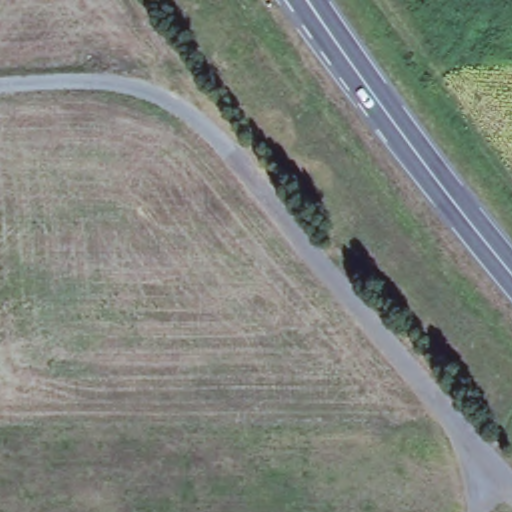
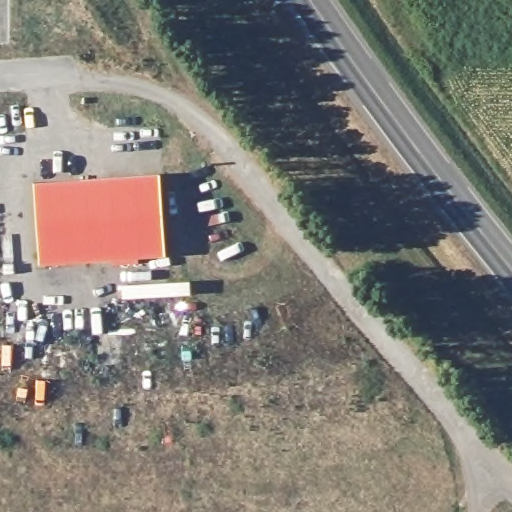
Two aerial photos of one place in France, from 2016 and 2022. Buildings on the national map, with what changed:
new [(162,180),(166,260),(39,266),(35,186),(162,180)]

